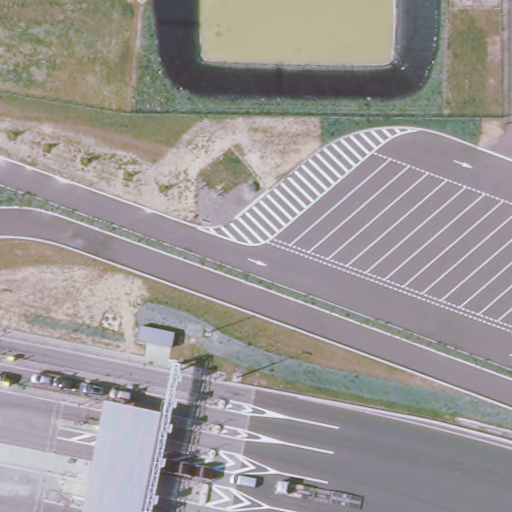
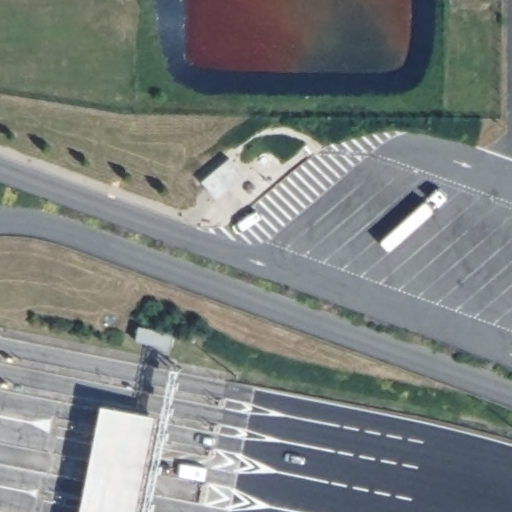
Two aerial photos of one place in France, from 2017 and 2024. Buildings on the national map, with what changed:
unchanged [(150,512),(70,512),(92,396),(171,411),(150,512)]

